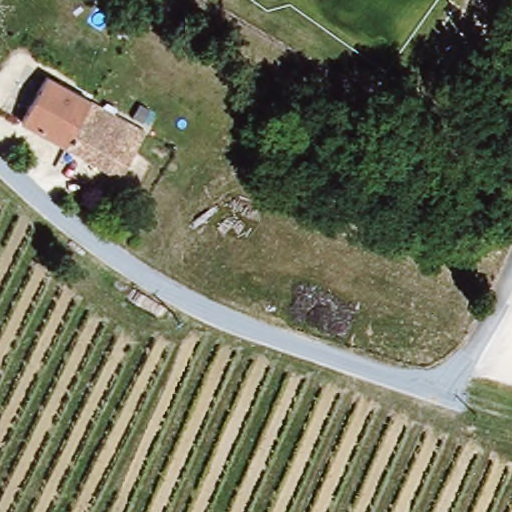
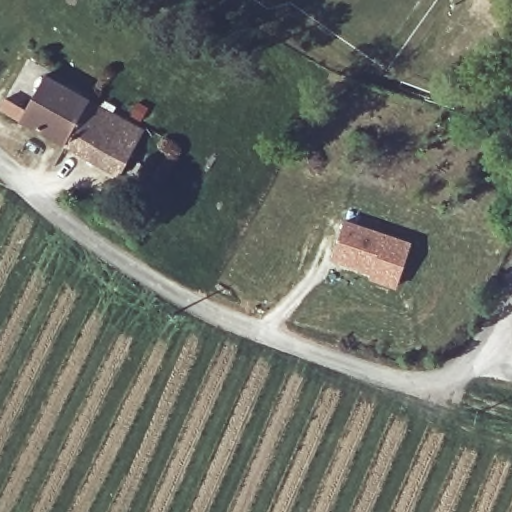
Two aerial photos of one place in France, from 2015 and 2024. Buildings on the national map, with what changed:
unchanged [(0,106),(20,69),(37,77),(16,122),(0,114),(0,106)]
unchanged [(115,176),(16,122),(37,77),(141,130),(115,176)]
new [(341,222),(408,244),(394,286),(367,278),(369,273),(328,259),(341,222)]

